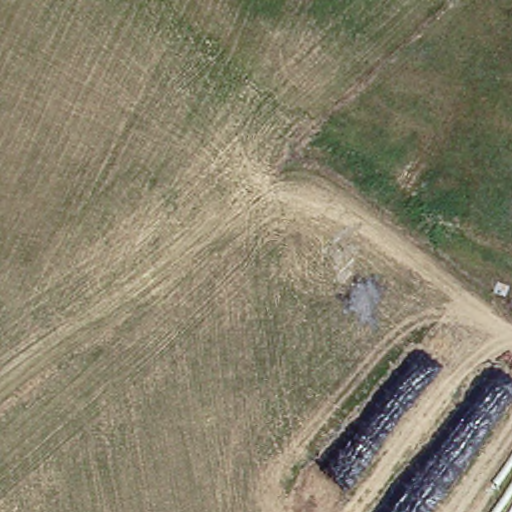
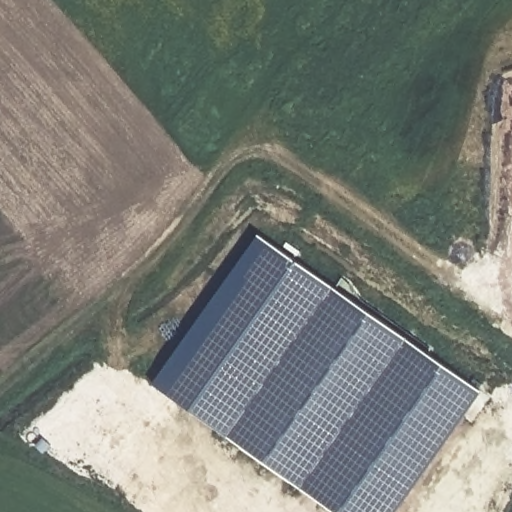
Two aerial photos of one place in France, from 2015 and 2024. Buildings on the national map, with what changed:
new [(257,235),(482,392),(399,512),(336,512),(154,383),(257,235)]

